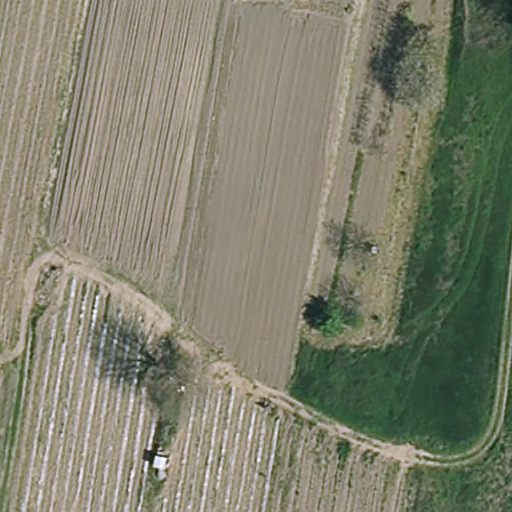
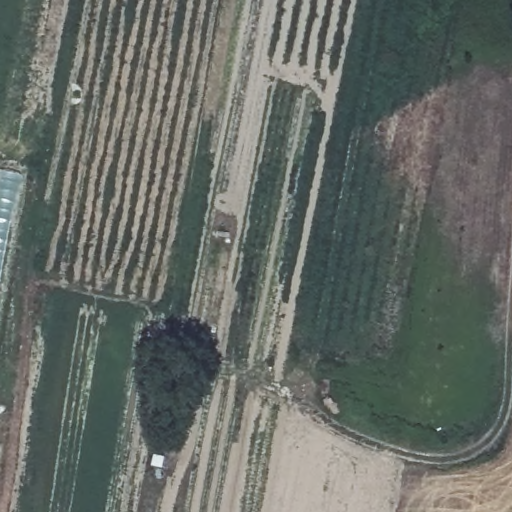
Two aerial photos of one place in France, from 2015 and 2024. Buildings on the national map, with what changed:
new [(22,175),(0,304),(0,171),(22,175)]

